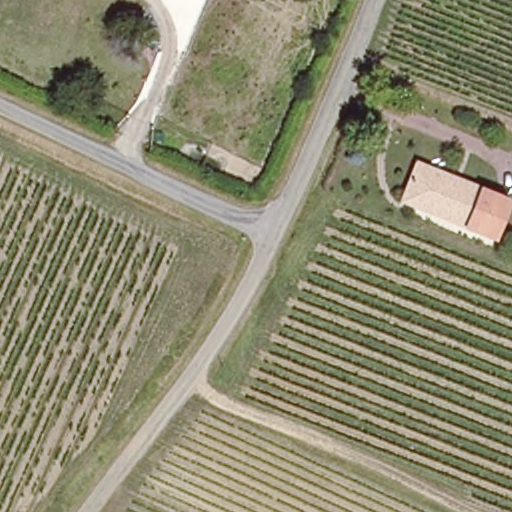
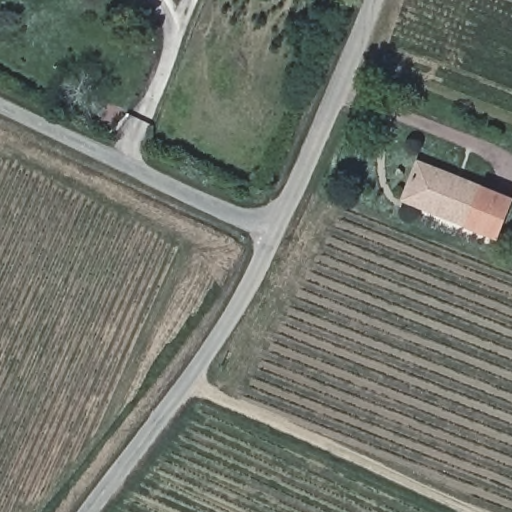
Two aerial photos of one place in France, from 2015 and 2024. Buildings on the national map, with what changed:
unchanged [(407,191),(419,164),(510,199),(497,235),(437,212),(403,197),(407,191)]

